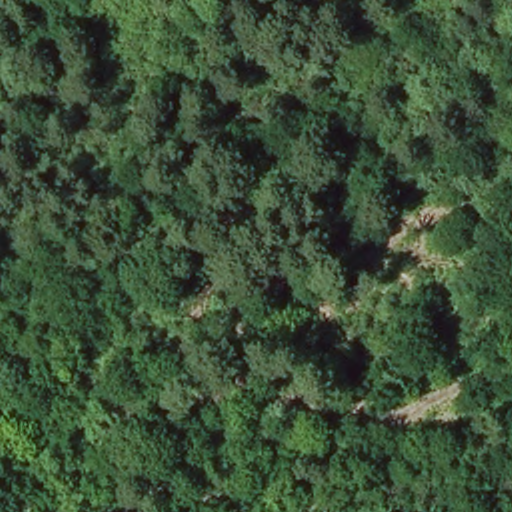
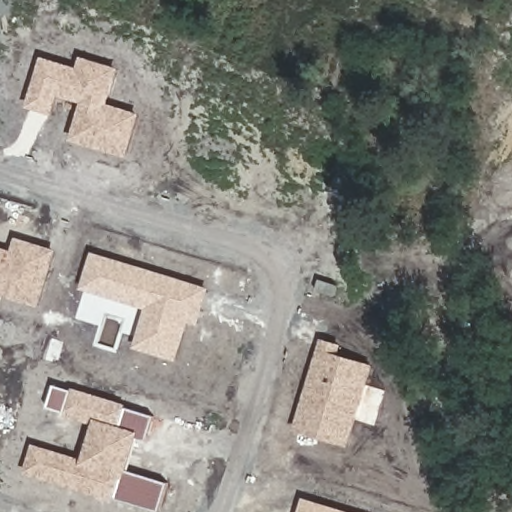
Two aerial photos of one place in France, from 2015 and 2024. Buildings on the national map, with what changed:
new [(141,113),(127,159),(70,140),(80,103),(58,96),(52,116),(25,107),(41,56),(76,67),(80,56),(120,69),(108,104),(141,113)]
new [(11,251),(15,238),(56,249),(39,308),(0,296),(0,248),(11,251)]
new [(177,361),(134,348),(145,310),(79,289),(90,252),(210,288),(199,325),(189,322),(177,361)]
new [(348,446),(293,430),(321,338),(342,345),(340,355),(373,365),(348,446)]
new [(71,390),(72,387),(127,404),(126,408),(156,417),(149,441),(140,439),(129,471),(169,484),(160,511),(116,498),(115,501),(24,474),(32,445),(83,460),(93,424),(64,415),(65,412),(47,407),(55,384),(71,390)]
new [(349,512),(298,512),(302,498),(349,512)]

